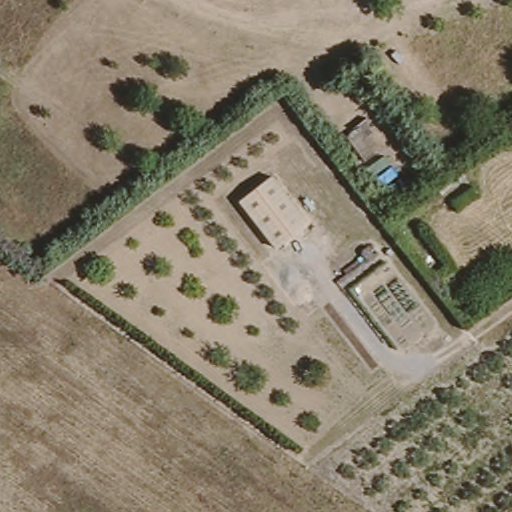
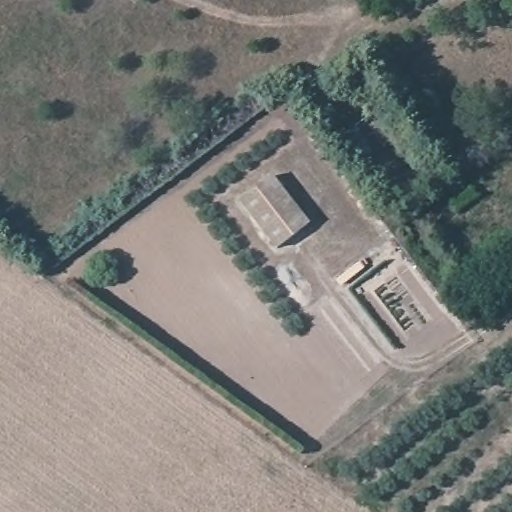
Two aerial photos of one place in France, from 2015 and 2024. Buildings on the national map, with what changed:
unchanged [(307,222),(276,247),(239,199),(271,175),(307,222)]

